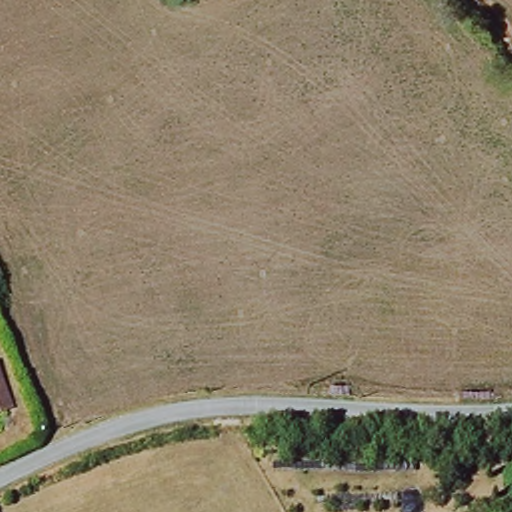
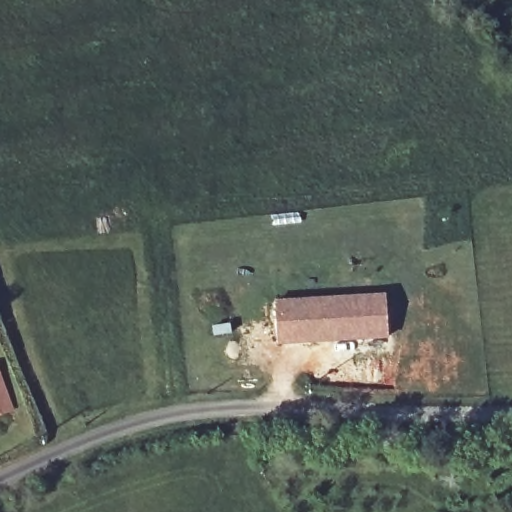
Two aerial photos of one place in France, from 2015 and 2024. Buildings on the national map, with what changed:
new [(385,293),(387,336),(276,343),(274,300),(385,293)]
unchanged [(9,409),(0,413),(0,385),(9,409)]

